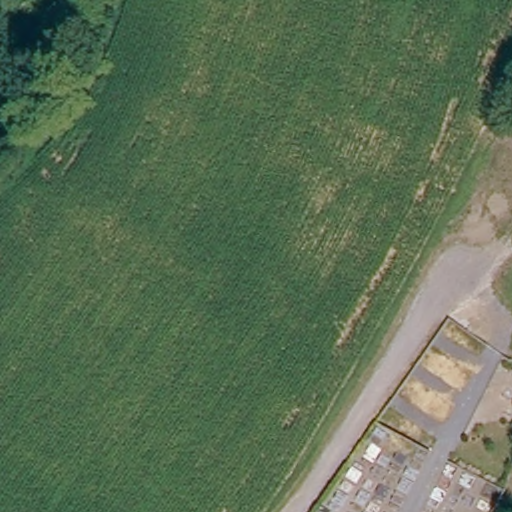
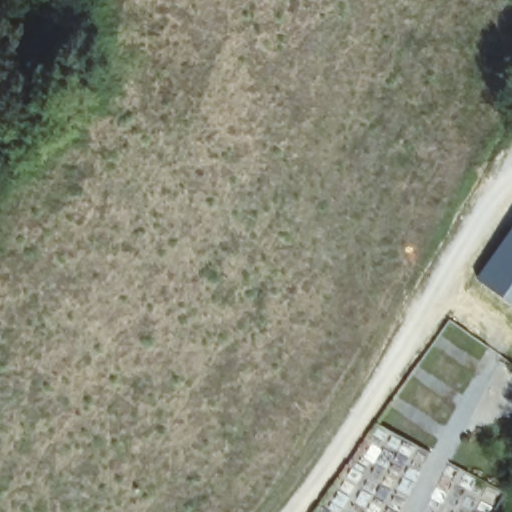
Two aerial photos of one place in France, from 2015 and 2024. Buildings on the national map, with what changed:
new [(512,304),(475,277),(512,226),(512,304)]

